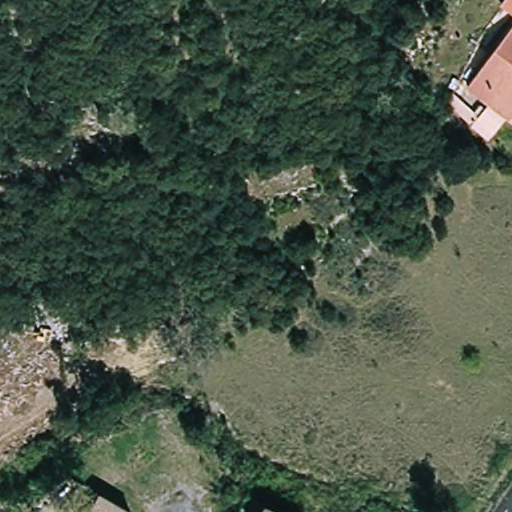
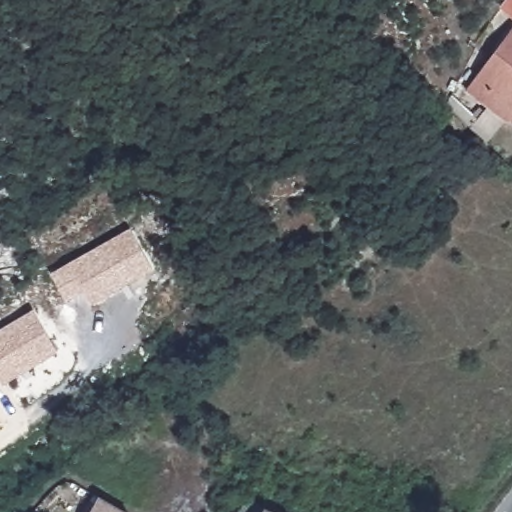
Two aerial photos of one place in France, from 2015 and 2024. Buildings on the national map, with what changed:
unchanged [(473,89),(512,34),(512,117),(473,89)]
unchanged [(492,138),(478,126),(491,111),(504,123),(492,138)]
new [(131,229),(153,269),(98,300),(99,303),(93,306),(84,289),(66,299),(52,274),(131,229)]
new [(56,352),(58,356),(53,359),(51,355),(3,384),(0,379),(0,331),(33,312),(58,351),(56,352)]
unchanged [(246,497),(276,512),(237,512),(246,497)]
unchanged [(118,512),(92,512),(99,501),(118,512)]

